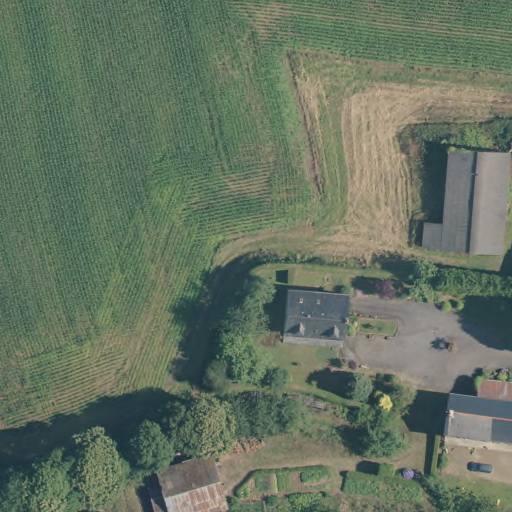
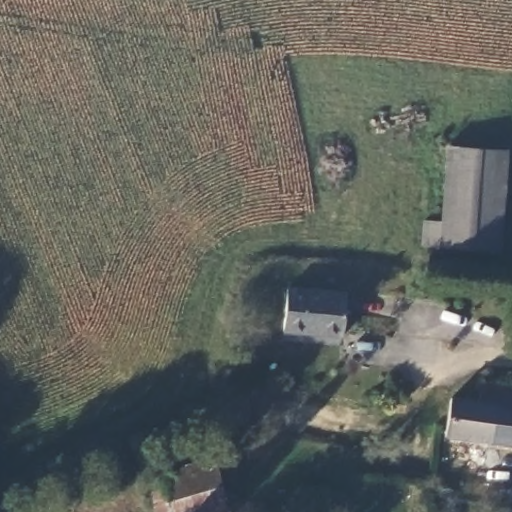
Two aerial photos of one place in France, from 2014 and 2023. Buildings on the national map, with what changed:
unchanged [(494,252),(419,238),(424,211),(440,214),(452,141),(511,151),(494,252)]
unchanged [(346,296),(338,339),(280,328),(287,285),(346,296)]
unchanged [(454,397),(481,400),(483,382),(512,385),(512,442),(450,435),(454,397)]
unchanged [(213,453),(232,512),(155,512),(147,472),(213,453)]

